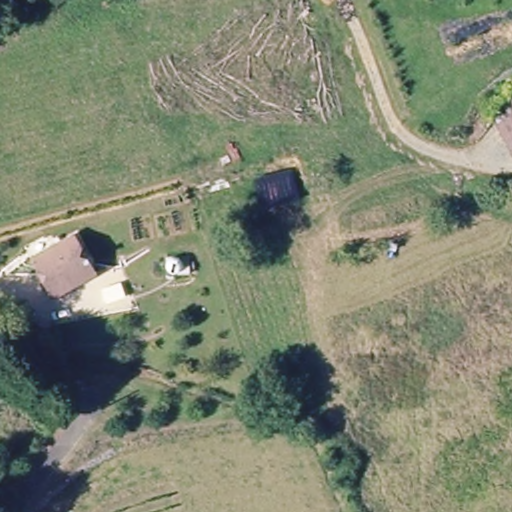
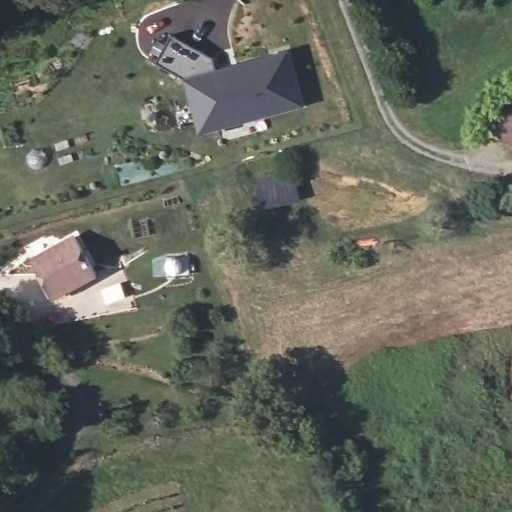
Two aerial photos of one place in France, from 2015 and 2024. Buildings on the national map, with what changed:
new [(172,36),(212,57),(216,69),(289,48),(304,106),(199,134),(185,80),(157,62),(172,36)]
unchanged [(495,113),(509,95),(512,93),(512,111),(498,119),(495,113)]
unchanged [(512,144),(498,119),(512,111),(512,144)]
unchanged [(29,263),(79,234),(101,270),(53,300),(29,263)]

